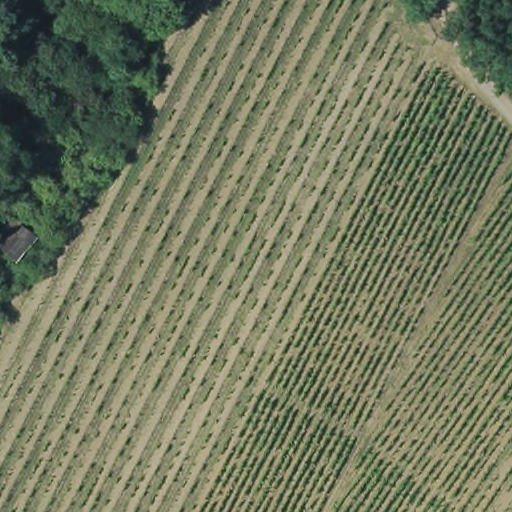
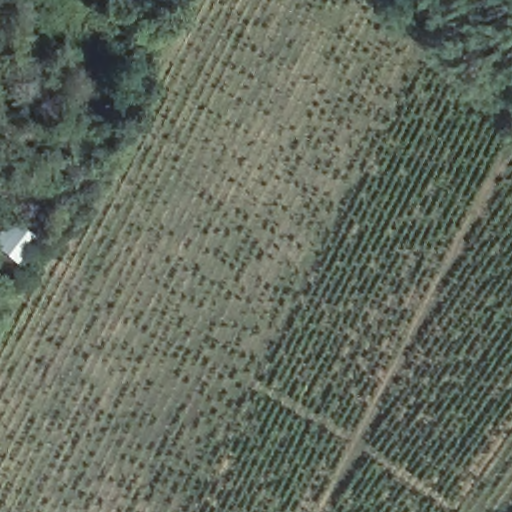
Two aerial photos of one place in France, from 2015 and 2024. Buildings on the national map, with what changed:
unchanged [(38,240),(20,261),(0,244),(0,241),(17,221),(38,240)]

